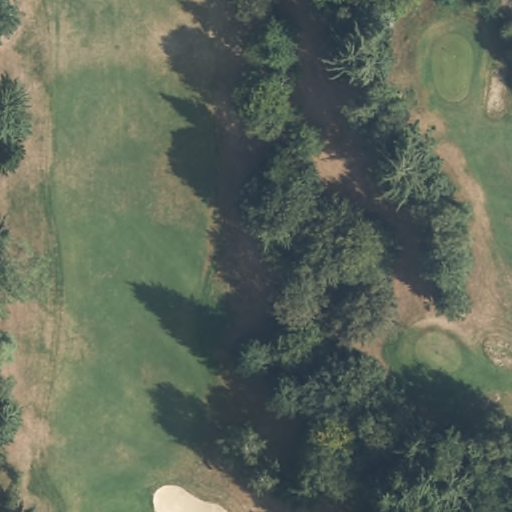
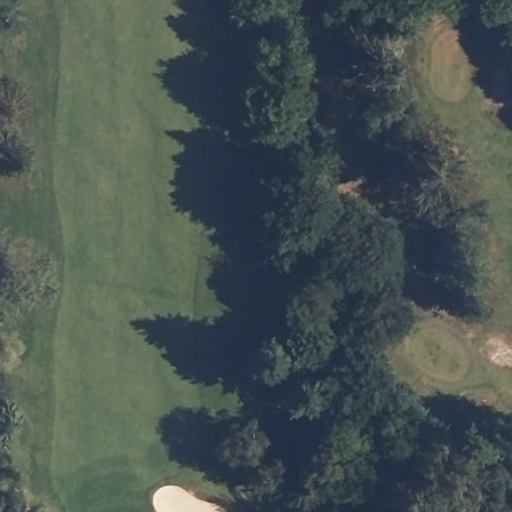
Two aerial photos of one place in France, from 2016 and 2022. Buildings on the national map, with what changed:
[]

